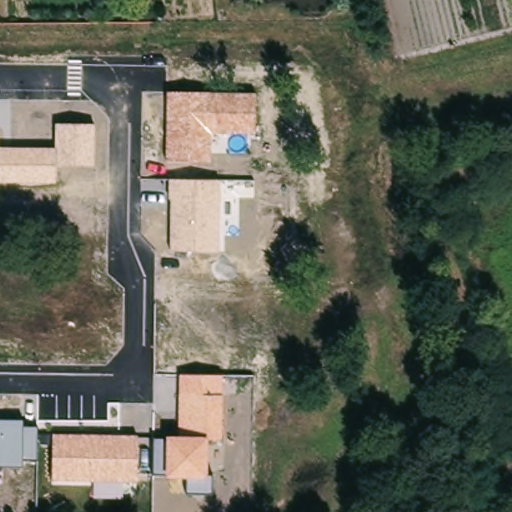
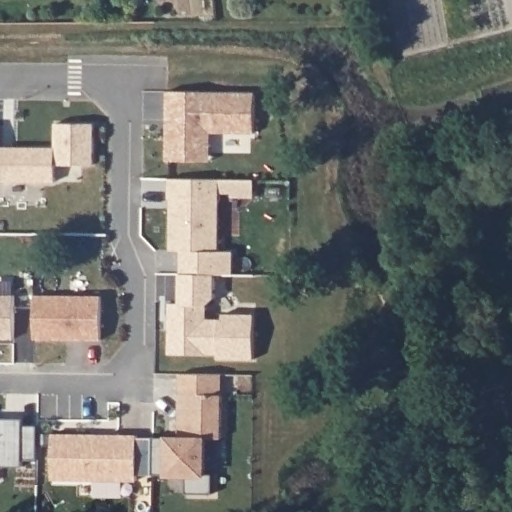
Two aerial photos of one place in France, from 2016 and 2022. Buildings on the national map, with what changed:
unchanged [(255,134),(211,135),(210,162),(167,161),(168,92),(254,93),(255,134)]
unchanged [(54,148),(55,124),(94,125),(93,167),(57,165),(56,183),(0,183),(0,147),(54,148)]
unchanged [(171,251),(171,180),(220,180),(219,252),(171,251)]
new [(169,307),(179,307),(179,277),(214,277),(214,301),(206,309),(206,323),(222,323),(223,318),(254,318),(253,363),(217,362),(217,357),(168,356),(168,333),(169,318),(169,307)]
new [(13,298),(13,342),(0,341),(0,297),(13,298)]
new [(33,298),(100,299),(99,343),(33,342),(33,298)]
unchanged [(222,375),(220,439),(207,438),(206,475),(213,476),(212,495),(187,494),(188,478),(166,477),(152,475),(153,437),(166,437),(178,437),(179,375),(222,375)]
unchanged [(23,421),(23,428),(38,428),(37,460),(22,460),(21,467),(0,466),(0,420),(23,421)]
unchanged [(136,437),(136,482),(123,482),(123,498),(94,498),(94,482),(53,481),(52,435),(136,437)]

